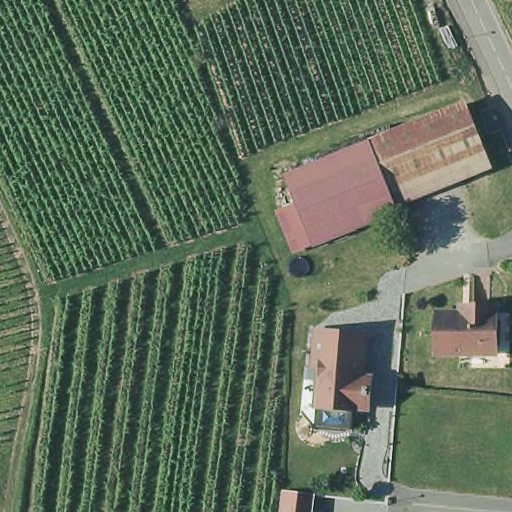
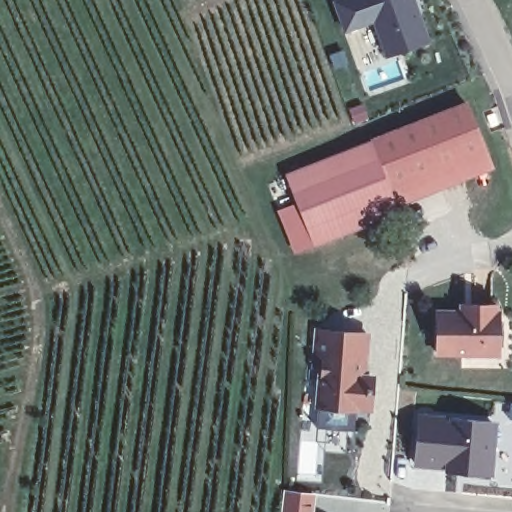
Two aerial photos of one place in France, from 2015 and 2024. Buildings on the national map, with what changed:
new [(387,54),(375,19),(345,30),(335,1),(337,0),(412,0),(426,40),(387,54)]
unchanged [(465,99),(483,145),(390,182),(371,136),(465,99)]
unchanged [(316,240),(310,241),(283,170),(287,169),(300,164),(361,141),(371,136),(390,182),(388,184),(396,209),(380,215),(323,236),(316,240)]
new [(388,184),(390,182),(483,145),(492,167),(396,209),(388,184)]
unchanged [(277,210),(295,203),(310,241),(292,250),(277,210)]
unchanged [(494,315),(496,317),(496,356),(435,356),(435,316),(460,316),(460,308),(470,308),(494,308),(494,315)]
unchanged [(354,331),(352,357),(354,357),(353,372),(364,373),(363,385),(365,385),(365,393),(362,393),(362,398),(350,407),(313,405),(316,365),(307,365),(310,328),(354,331)]
new [(417,411),(497,420),(493,475),(412,466),(417,411)]
unchanged [(311,492),(309,512),(281,512),(283,490),(311,492)]

